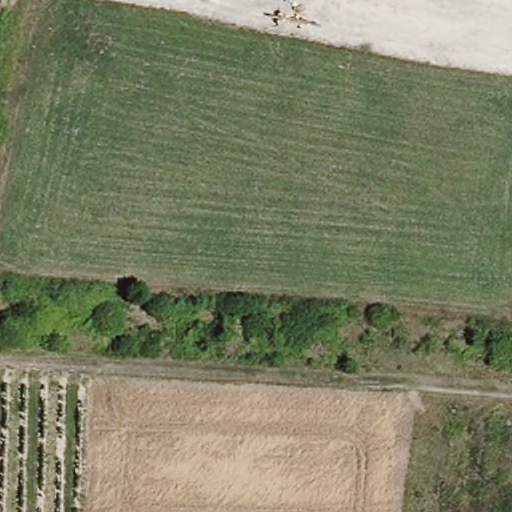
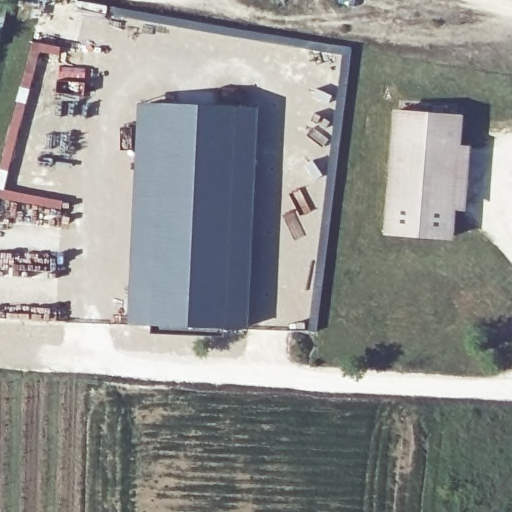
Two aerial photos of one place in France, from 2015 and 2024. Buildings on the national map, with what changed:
new [(139,102),(257,106),(247,326),(129,322),(139,102)]
new [(382,233),(392,109),(462,114),(461,145),(470,145),(464,210),(455,209),(452,239),(382,233)]

